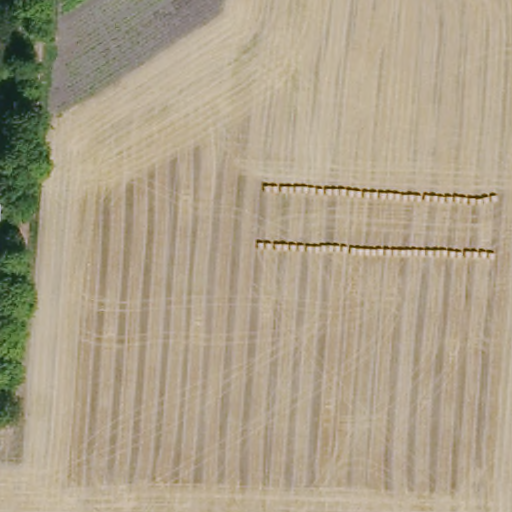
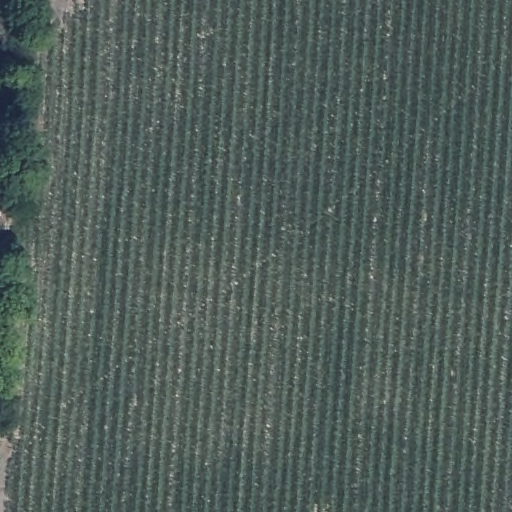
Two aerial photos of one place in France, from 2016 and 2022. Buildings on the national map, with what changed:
unchanged [(0,262),(0,135),(8,136),(0,262)]
unchanged [(0,356),(0,294),(5,295),(0,356)]

